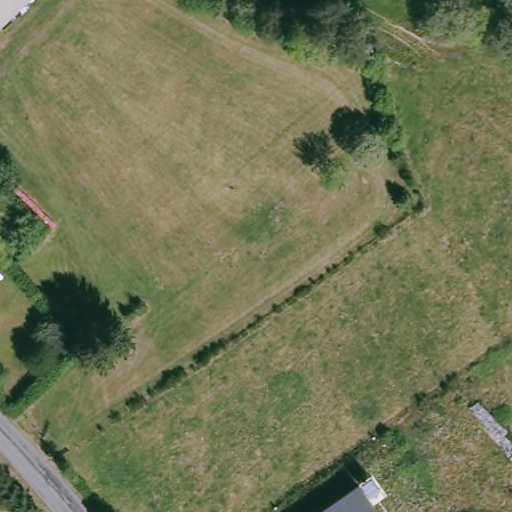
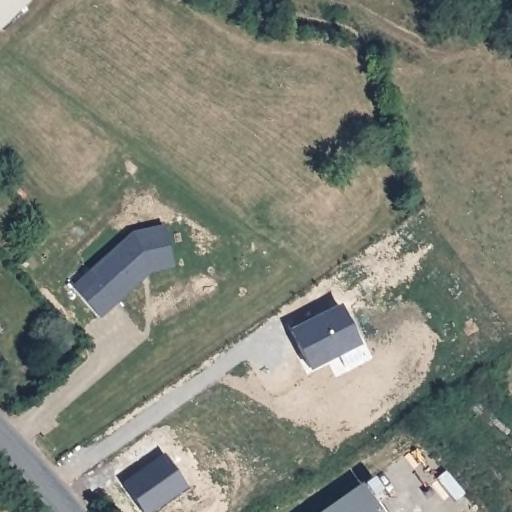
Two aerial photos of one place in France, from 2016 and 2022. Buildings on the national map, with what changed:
unchanged [(27,2),(0,27),(0,0),(30,0),(27,2)]
new [(131,229),(163,222),(172,260),(150,265),(146,262),(137,270),(141,274),(100,313),(73,285),(131,229)]
new [(343,307),(362,343),(358,345),(365,358),(347,368),(340,354),(312,368),(294,332),(343,307)]
new [(189,486),(151,512),(145,512),(125,482),(167,453),(189,486)]
unchanged [(320,512),(361,482),(380,512),(320,512)]

